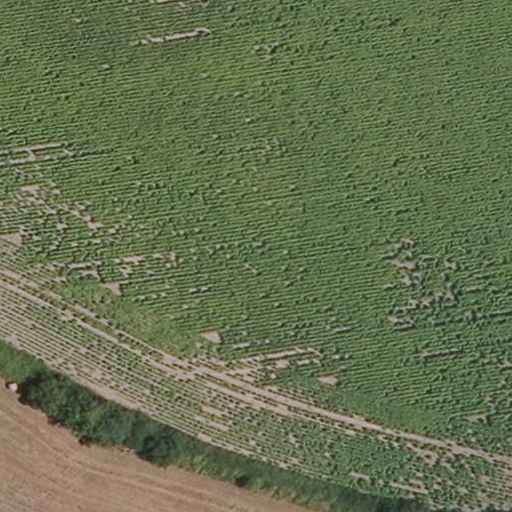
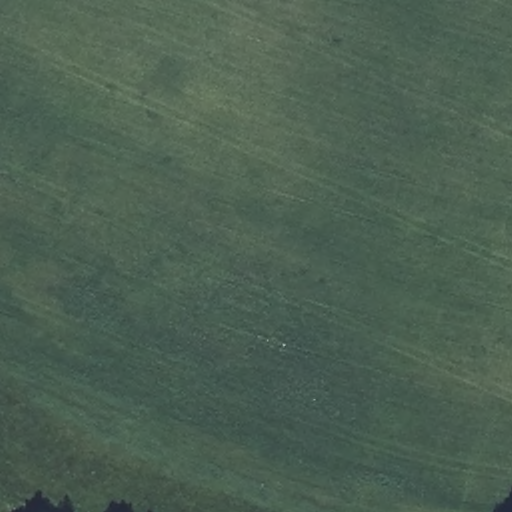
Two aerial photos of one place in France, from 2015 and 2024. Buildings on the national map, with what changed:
[]

